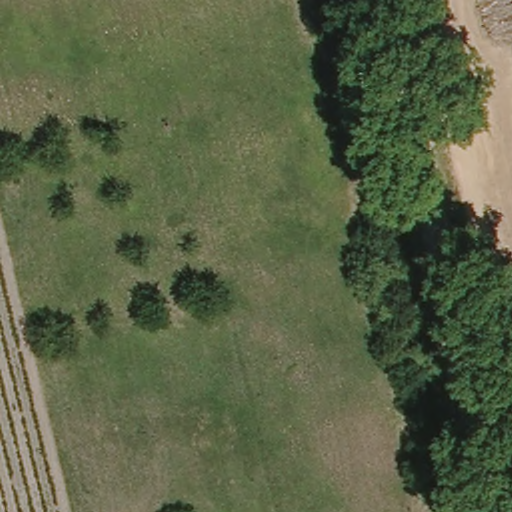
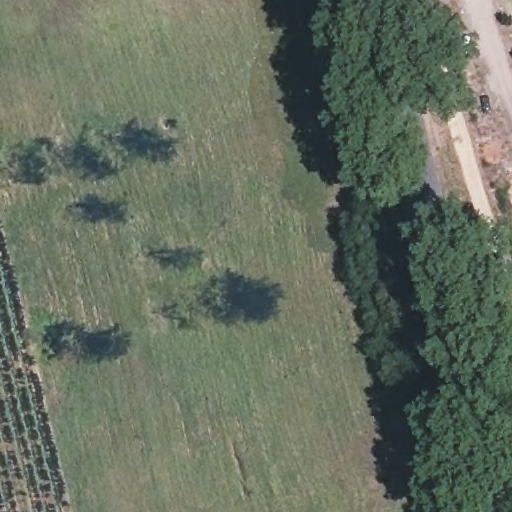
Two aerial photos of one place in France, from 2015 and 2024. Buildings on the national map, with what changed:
[]

